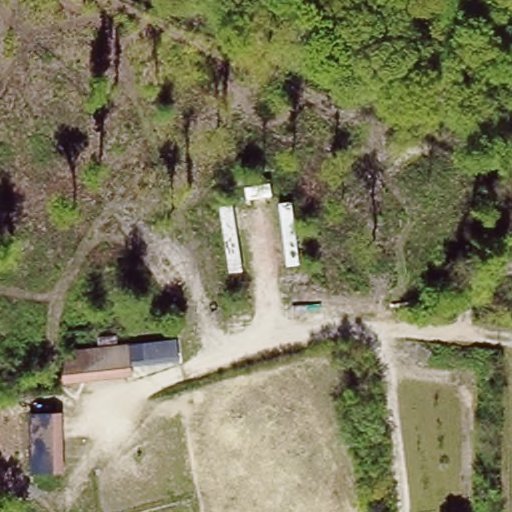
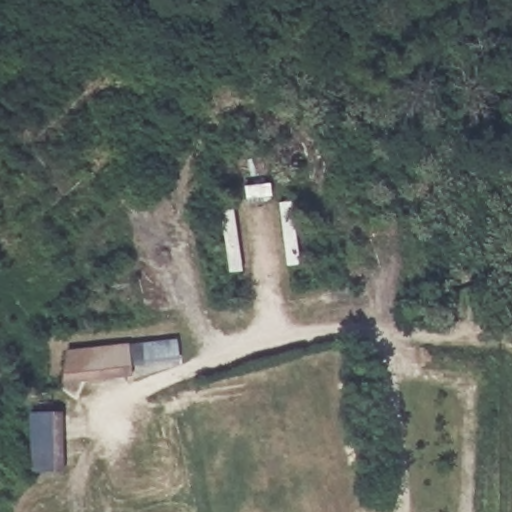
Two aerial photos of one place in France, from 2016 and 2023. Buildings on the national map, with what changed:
unchanged [(181,364),(131,371),(132,377),(72,386),(66,355),(127,347),(177,339),(181,364)]
unchanged [(35,410),(62,410),(65,475),(37,474),(35,410)]

